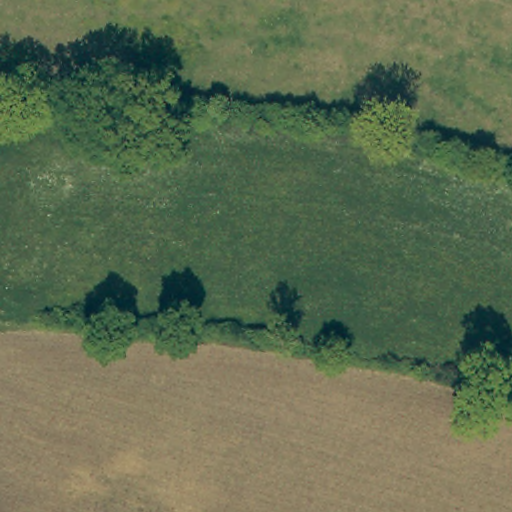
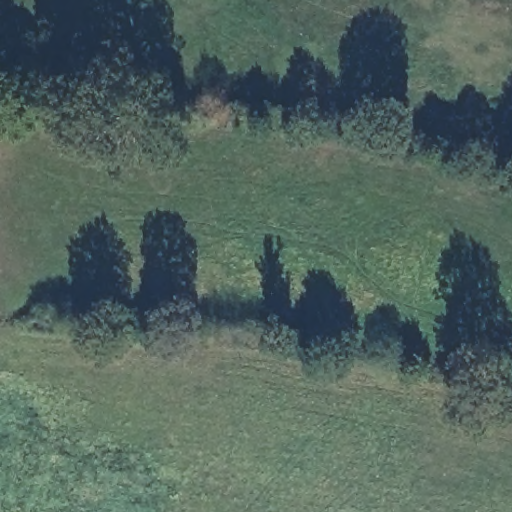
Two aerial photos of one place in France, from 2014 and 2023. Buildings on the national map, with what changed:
[]

